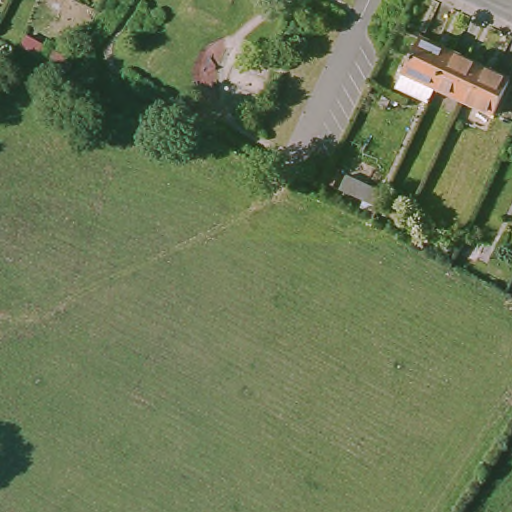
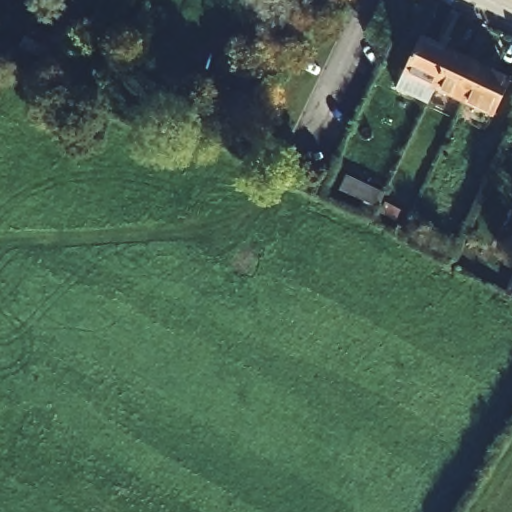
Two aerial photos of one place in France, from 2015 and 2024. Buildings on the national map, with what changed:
unchanged [(397,82),(415,44),(445,57),(432,86),(427,96),(397,82)]
unchanged [(494,114),(467,102),(432,86),(445,57),(482,73),(508,85),(494,114)]
unchanged [(331,198),(338,182),(347,187),(378,203),(371,218),(331,198)]

